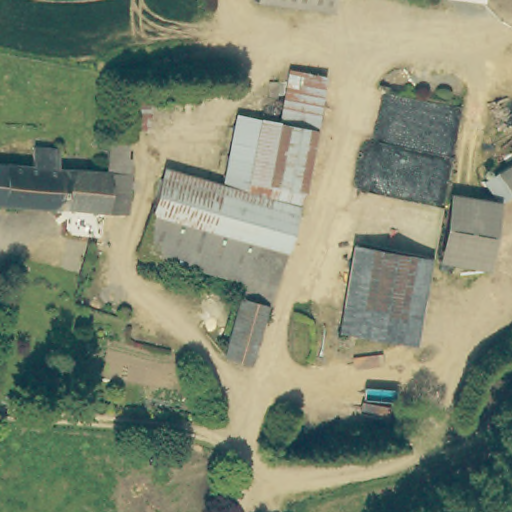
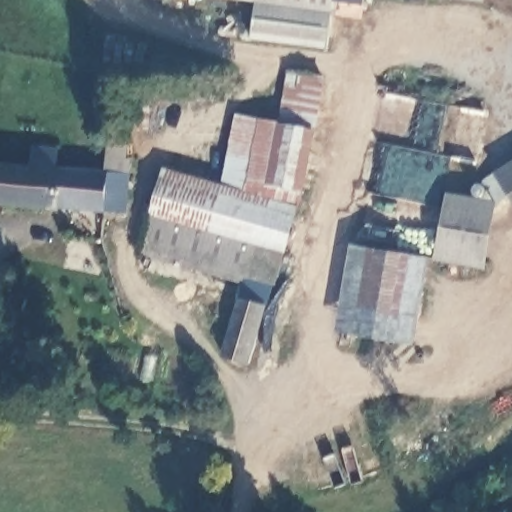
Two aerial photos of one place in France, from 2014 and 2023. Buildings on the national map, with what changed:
new [(250,1),(246,0),(251,0),(250,1)]
unchanged [(327,11),(250,1),(251,0),(329,0),(327,11)]
unchanged [(482,3),(467,0),(482,0),(482,3)]
new [(323,49),(251,41),(256,1),(327,11),(323,49)]
unchanged [(308,127),(275,120),(285,67),(318,73),(308,127)]
unchanged [(183,80),(184,96),(139,97),(138,123),(114,123),(113,82),(183,80)]
unchanged [(297,186),(263,300),(235,292),(241,271),(137,242),(160,165),(218,182),(231,111),(275,120),(308,127),(297,186)]
unchanged [(0,199),(0,160),(22,162),(24,142),(49,145),(47,163),(95,168),(99,128),(117,129),(116,154),(120,155),(119,169),(120,170),(117,208),(95,207),(49,202),(49,204),(0,199)]
unchanged [(512,157),(512,192),(510,190),(497,199),(496,198),(483,176),(512,157)]
unchanged [(485,264),(438,255),(448,190),(496,198),(485,264)]
unchanged [(403,339),(328,326),(343,242),(417,254),(403,339)]
unchanged [(244,358),(218,351),(235,294),(260,302),(244,358)]

